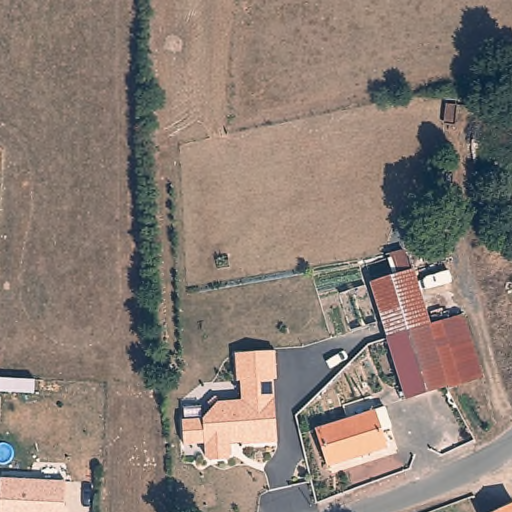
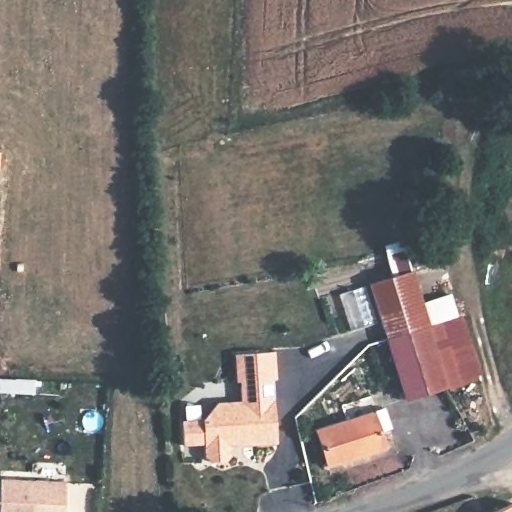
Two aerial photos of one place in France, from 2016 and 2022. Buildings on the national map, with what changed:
unchanged [(406,404),(370,289),(411,276),(429,330),(446,391),(406,404)]
unchanged [(446,391),(429,330),(461,321),(479,383),(447,396),(446,391)]
unchanged [(275,351),(275,444),(231,446),(230,459),(225,463),(213,464),(206,459),(205,446),(181,446),(180,419),(203,418),(215,401),(241,399),(240,388),(236,388),(235,355),(275,351)]
unchanged [(311,434),(379,413),(385,433),(375,436),(380,453),(323,471),(311,434)]
unchanged [(65,487),(64,512),(0,512),(0,495),(0,484),(65,487)]
unchanged [(510,512),(501,512),(508,508),(510,512)]

